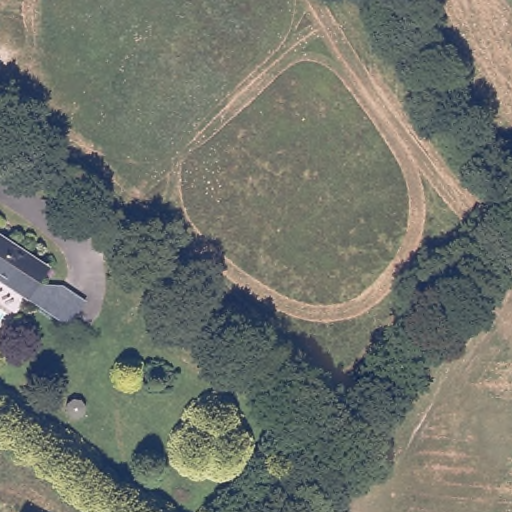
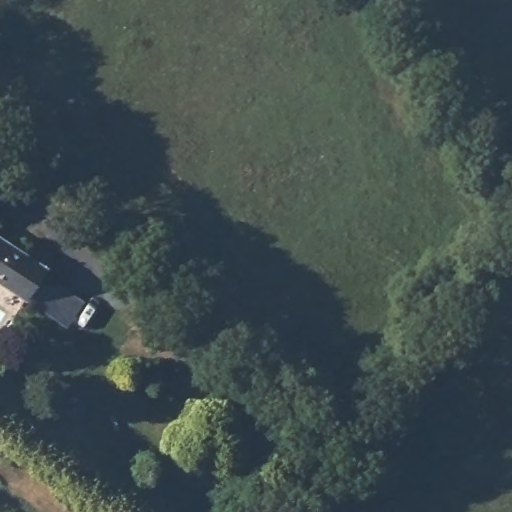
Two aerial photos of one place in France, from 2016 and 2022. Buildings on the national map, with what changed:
unchanged [(28,290),(0,271),(0,232),(47,264),(28,290)]

